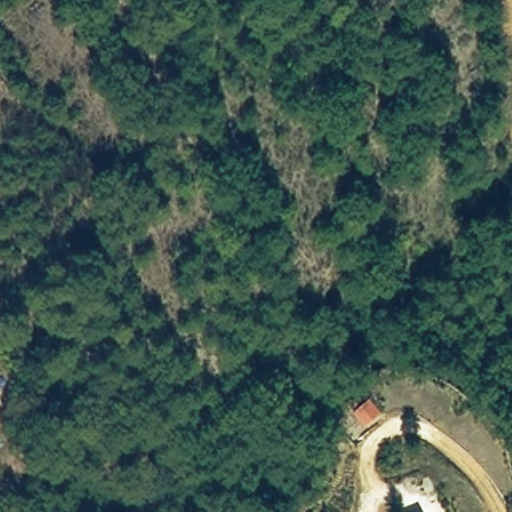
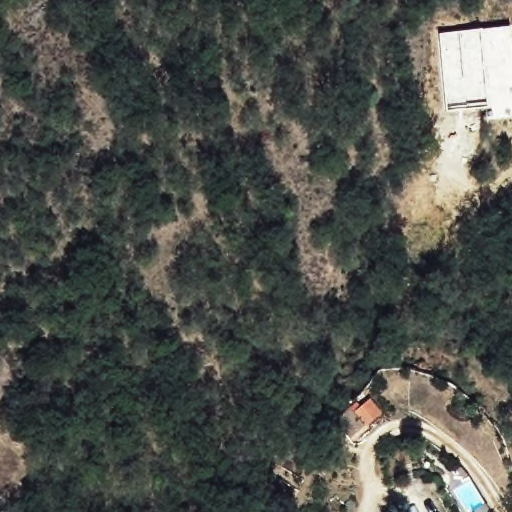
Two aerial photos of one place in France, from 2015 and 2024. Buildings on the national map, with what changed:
new [(512,41),(512,117),(486,119),(485,109),(445,112),(437,34),(510,25),(512,41)]

